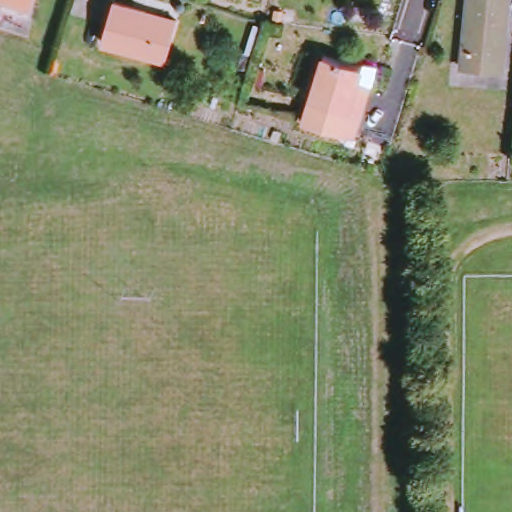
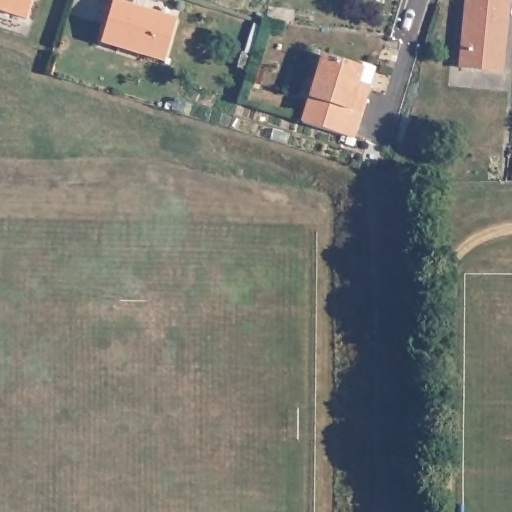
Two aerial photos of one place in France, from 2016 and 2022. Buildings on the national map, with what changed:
unchanged [(0,9),(0,0),(40,0),(34,20),(0,9)]
unchanged [(465,68),(471,0),(512,0),(512,15),(507,71),(465,68)]
unchanged [(107,41),(118,1),(182,21),(170,61),(107,41)]
unchanged [(306,120),(326,53),(363,65),(355,90),(366,95),(355,135),(306,120)]

